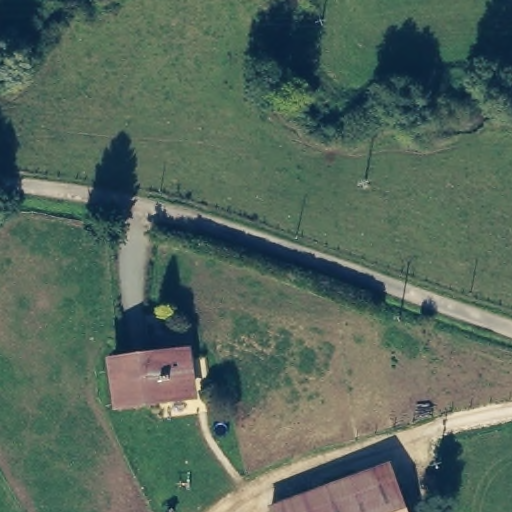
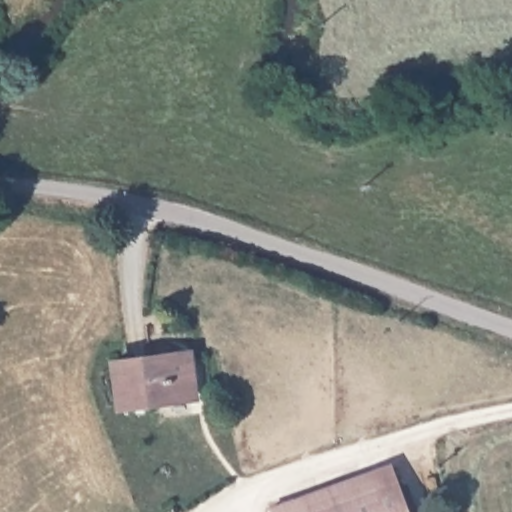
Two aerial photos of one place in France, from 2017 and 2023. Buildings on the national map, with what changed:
unchanged [(118,405),(111,356),(188,344),(196,396),(118,405)]
unchanged [(396,458),(413,512),(273,512),(269,503),(396,458)]

